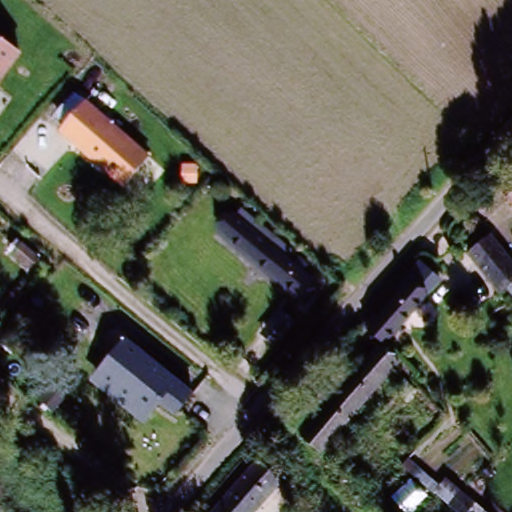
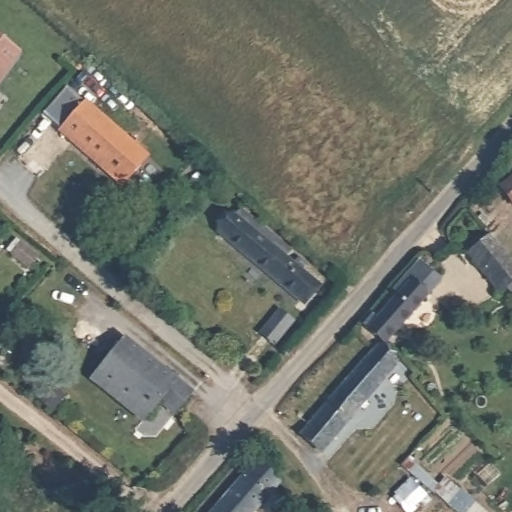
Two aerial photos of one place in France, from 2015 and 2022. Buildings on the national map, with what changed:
unchanged [(0,82),(0,41),(20,54),(0,82)]
unchanged [(149,156),(122,189),(59,134),(86,102),(149,156)]
unchanged [(512,185),(512,206),(502,195),(512,185)]
unchanged [(234,216),(317,289),(301,308),(221,235),(234,216)]
unchanged [(512,262),(512,286),(504,292),(467,256),(487,236),(512,262)]
unchanged [(358,331),(389,297),(384,292),(407,267),(413,272),(415,270),(430,283),(374,345),(365,337),(359,332),(358,331)]
unchanged [(194,392),(176,418),(158,405),(144,425),(90,380),(123,340),(194,392)]
unchanged [(373,361),(392,377),(321,456),(303,440),(373,361)]
unchanged [(251,473),(275,495),(260,512),(218,512),(251,473)]

